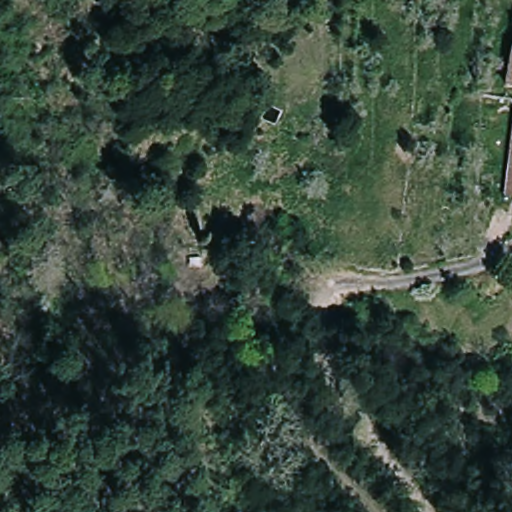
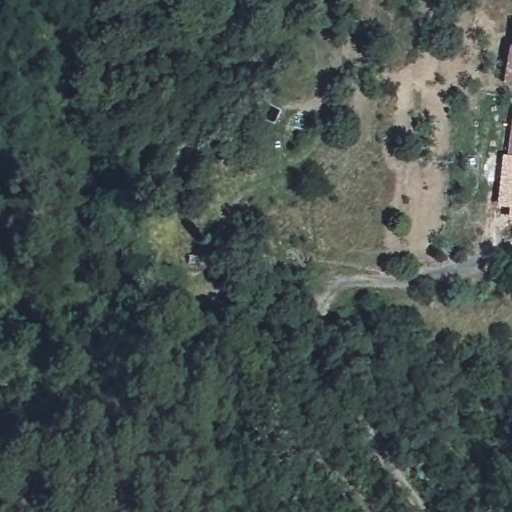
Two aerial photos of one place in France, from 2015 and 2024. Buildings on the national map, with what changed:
unchanged [(507,196),(512,157),(512,197),(507,196)]

